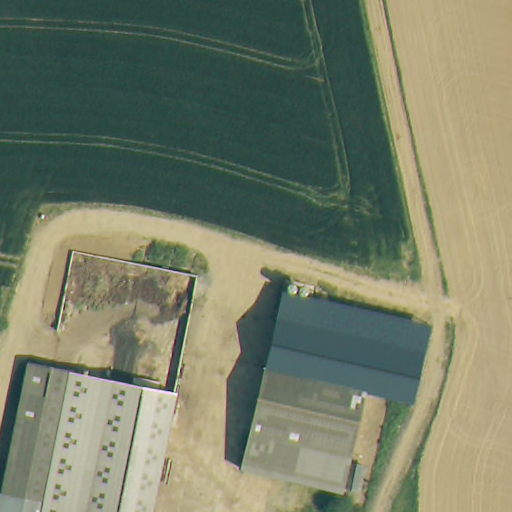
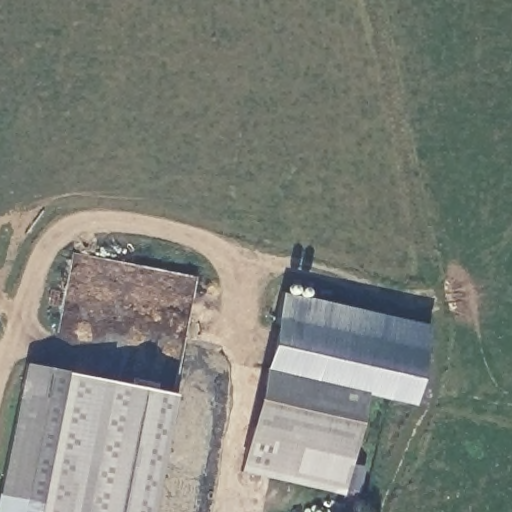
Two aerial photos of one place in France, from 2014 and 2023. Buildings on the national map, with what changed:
unchanged [(342,493),(240,470),(281,289),(432,324),(412,406),(364,395),(342,493)]
unchanged [(0,512),(0,496),(29,362),(175,391),(152,512),(0,512)]

